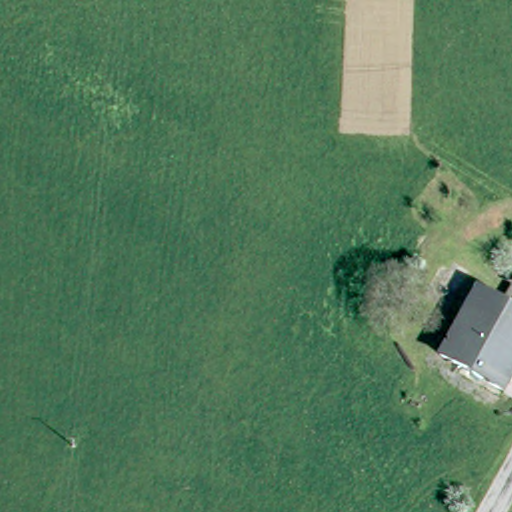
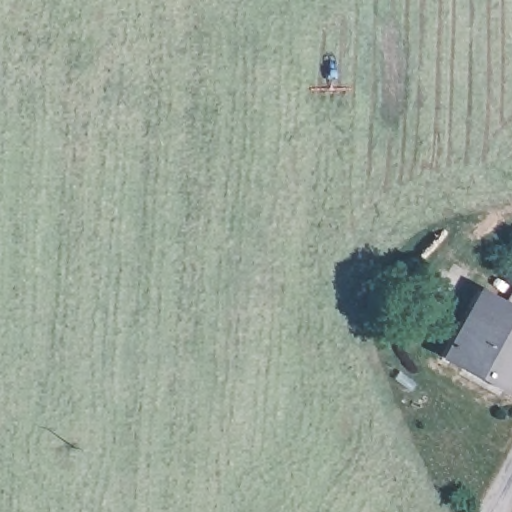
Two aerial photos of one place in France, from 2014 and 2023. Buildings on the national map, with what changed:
unchanged [(474,294),(512,312),(512,375),(504,393),(439,362),(474,294)]

